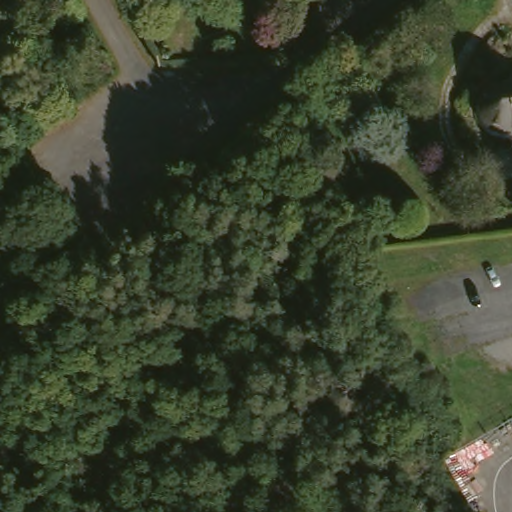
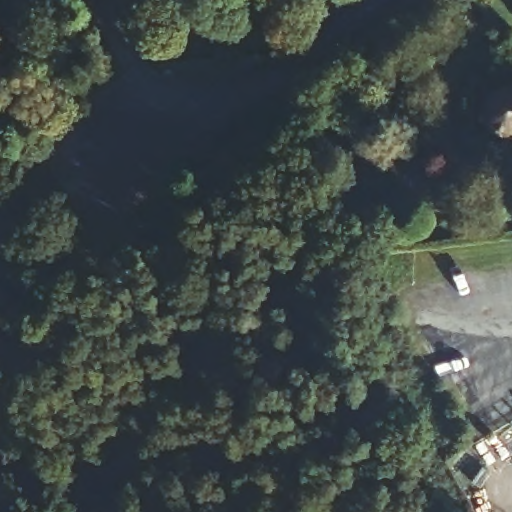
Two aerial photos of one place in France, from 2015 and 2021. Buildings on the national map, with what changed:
unchanged [(497,129),(490,122),(486,115),(484,107),(485,99),(487,92),(490,87),(494,82),(499,79),(506,75),(512,75),(512,134),(505,133),(497,129)]

